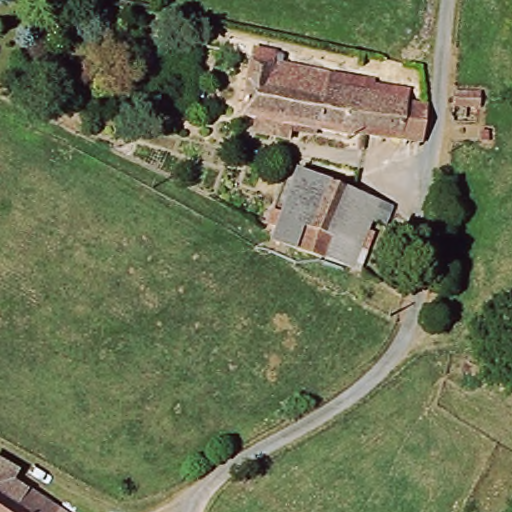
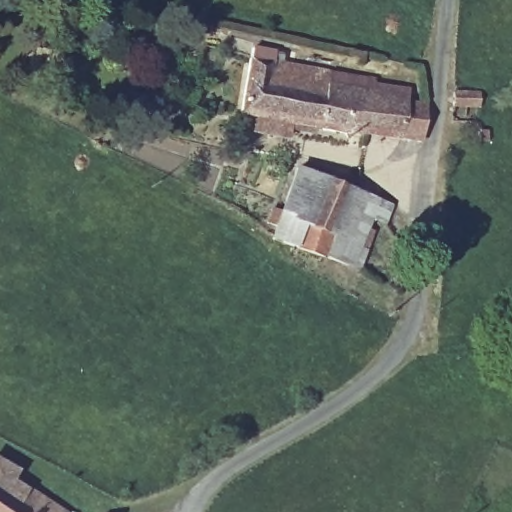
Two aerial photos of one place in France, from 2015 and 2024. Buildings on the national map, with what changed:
unchanged [(372,86),(368,104),(425,112),(420,147),(237,125),(244,69),(257,71),(258,61),(267,62),(266,71),(372,86)]
unchanged [(487,104),(461,101),(465,90),(487,91),(487,104)]
unchanged [(358,265),(283,241),(303,178),(378,200),(358,265)]
unchanged [(18,506),(25,494),(54,512),(0,512),(0,495),(18,506)]

